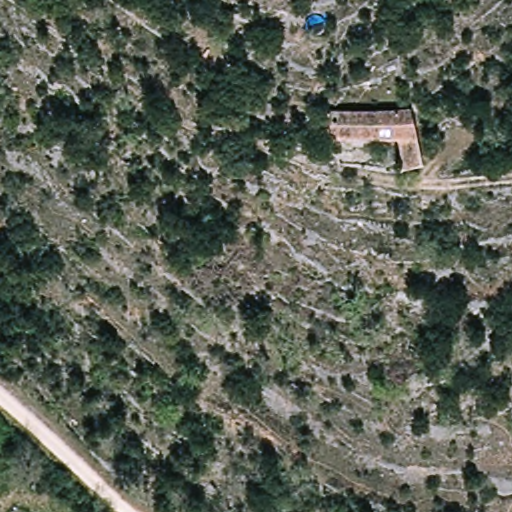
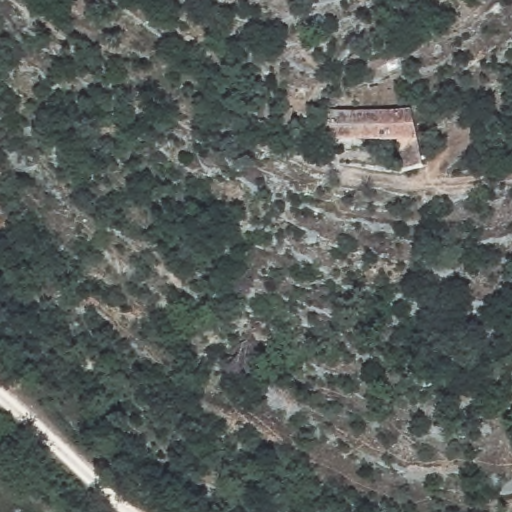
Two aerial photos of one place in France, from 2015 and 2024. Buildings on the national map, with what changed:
unchanged [(402,169),(401,140),(329,141),(329,113),(403,111),(415,111),(416,140),(418,169),(402,169)]

